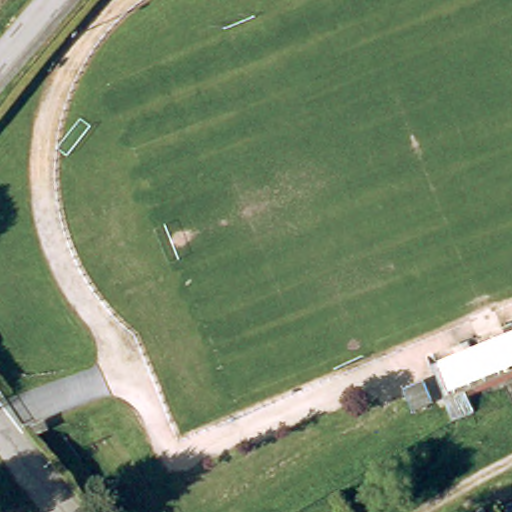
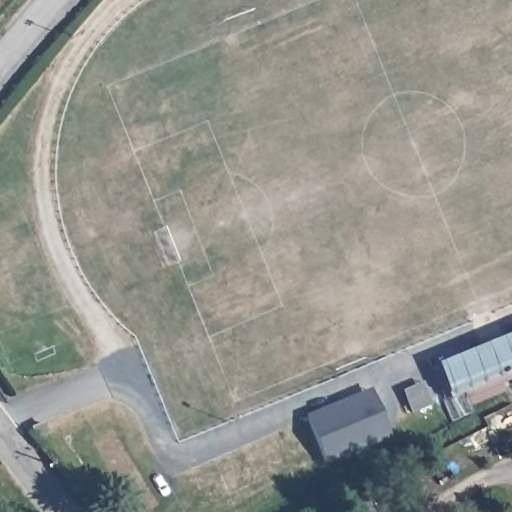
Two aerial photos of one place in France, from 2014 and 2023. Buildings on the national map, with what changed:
unchanged [(453,399),(442,365),(512,336),(512,377),(475,392),(481,410),(482,414),(461,422),(453,399)]
unchanged [(416,409),(411,394),(408,385),(422,380),(425,390),(430,404),(416,409)]
new [(368,391),(378,414),(386,434),(322,461),(305,416),(360,394),(368,391)]
unchanged [(36,435),(33,428),(42,424),(45,431),(36,435)]

